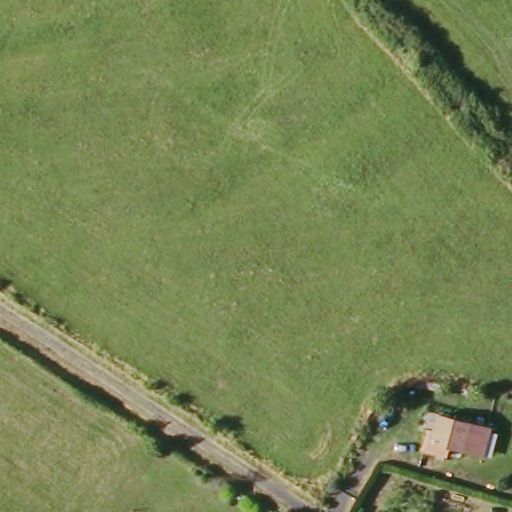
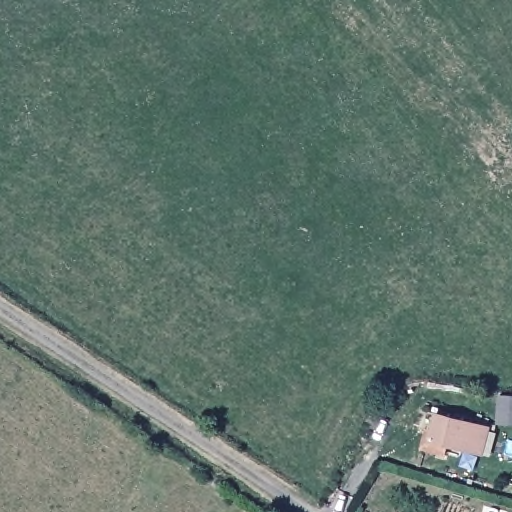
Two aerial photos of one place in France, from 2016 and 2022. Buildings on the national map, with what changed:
unchanged [(483,454),(466,447),(451,442),(447,451),(425,443),(433,424),(438,426),(445,410),(476,423),(493,429),(483,454)]

